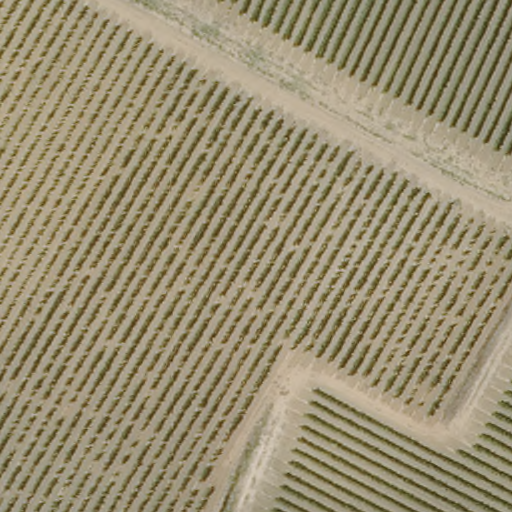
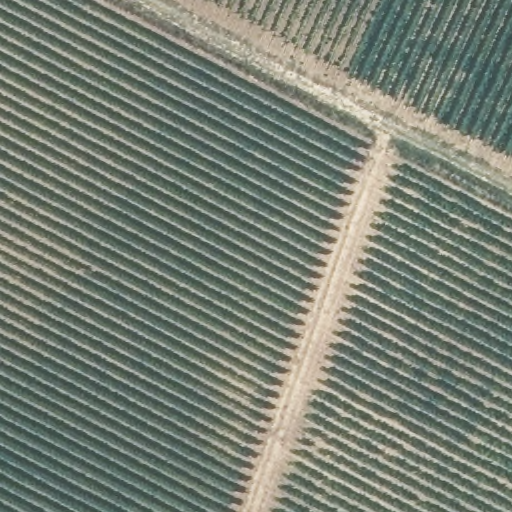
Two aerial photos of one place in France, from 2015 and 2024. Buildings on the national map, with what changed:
[]

